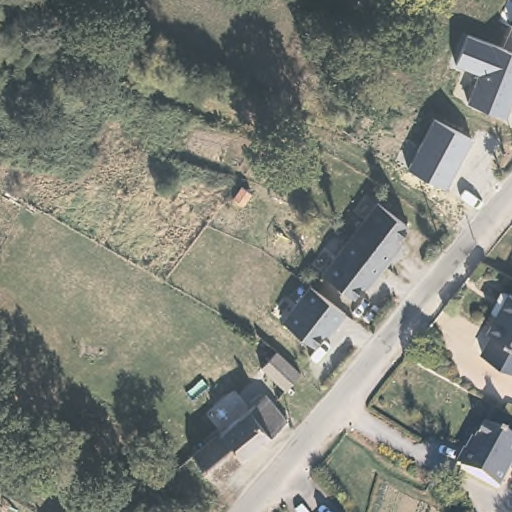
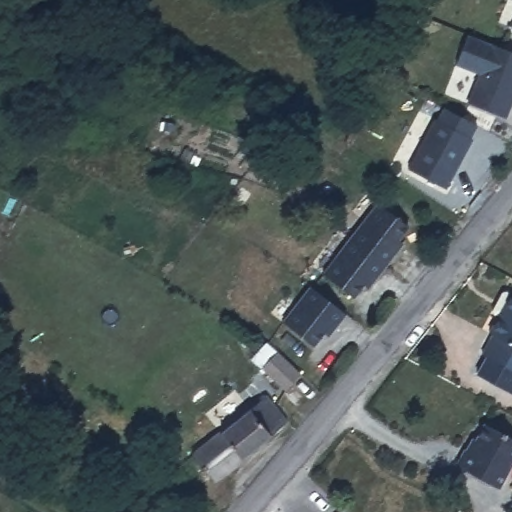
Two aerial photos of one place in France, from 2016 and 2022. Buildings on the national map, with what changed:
unchanged [(461,49),(482,40),(512,51),(512,101),(506,117),(468,102),(478,73),(455,66),(461,49)]
unchanged [(477,126),(468,141),(445,188),(411,171),(436,121),(444,109),(477,126)]
unchanged [(327,273),(384,199),(416,224),(397,247),(402,251),(381,278),(377,274),(358,297),(327,273)]
unchanged [(281,322),(309,286),(346,314),(335,327),(330,324),(312,347),(281,322)]
unchanged [(483,360),(492,343),(487,341),(495,327),(492,325),(488,320),(498,302),(502,302),(506,305),(508,302),(512,304),(512,375),(483,360)]
unchanged [(295,375),(284,387),(261,365),(270,355),(295,375)]
unchanged [(280,426),(256,447),(206,486),(185,461),(222,430),(260,397),(280,426)]
unchanged [(512,436),(512,455),(497,484),(461,463),(461,462),(457,459),(463,446),(468,447),(482,421),(512,436)]

